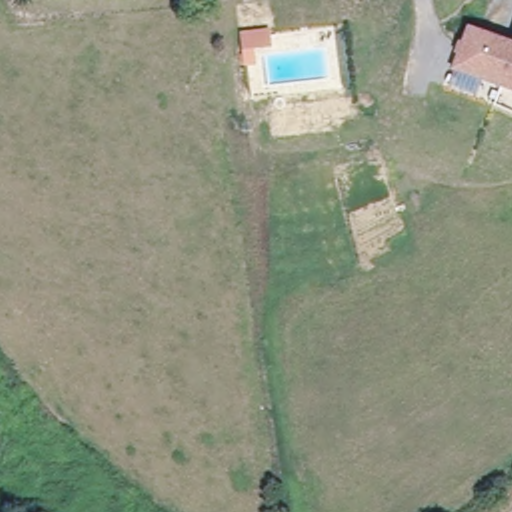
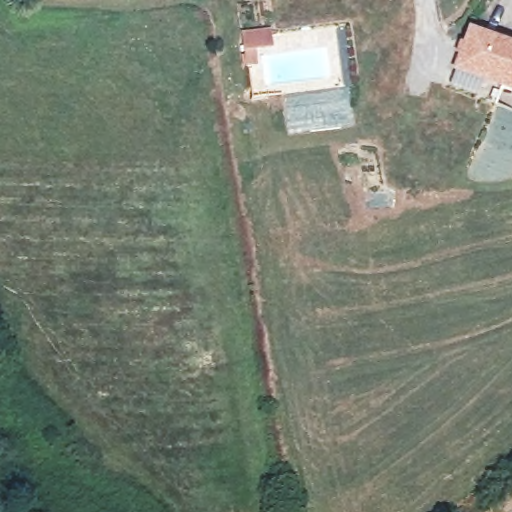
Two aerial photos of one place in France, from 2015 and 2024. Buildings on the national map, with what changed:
unchanged [(241,37),(264,33),(265,45),(250,48),(254,64),(247,65),(241,37)]
unchanged [(473,34),(512,45),(512,87),(462,73),(473,34)]

